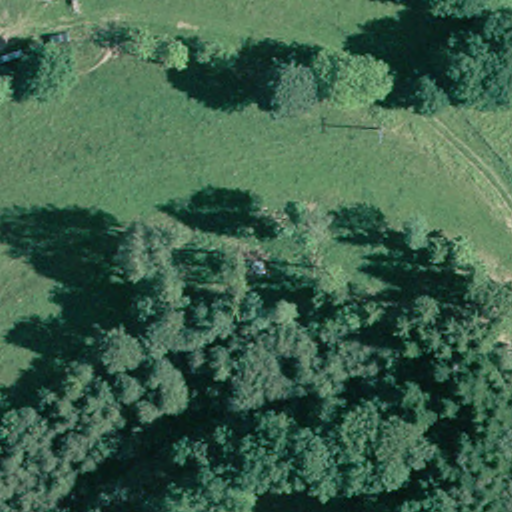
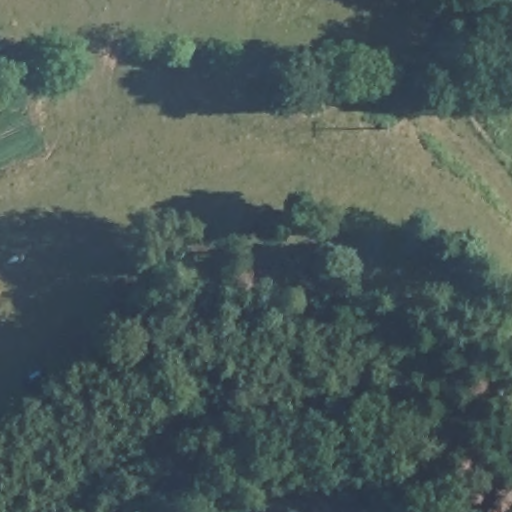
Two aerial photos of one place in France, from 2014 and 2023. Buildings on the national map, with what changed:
[]

